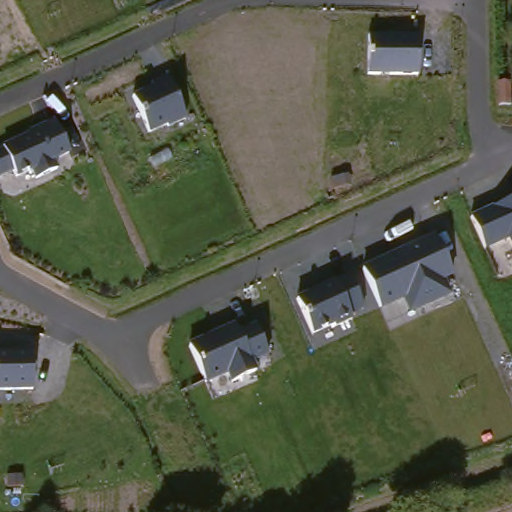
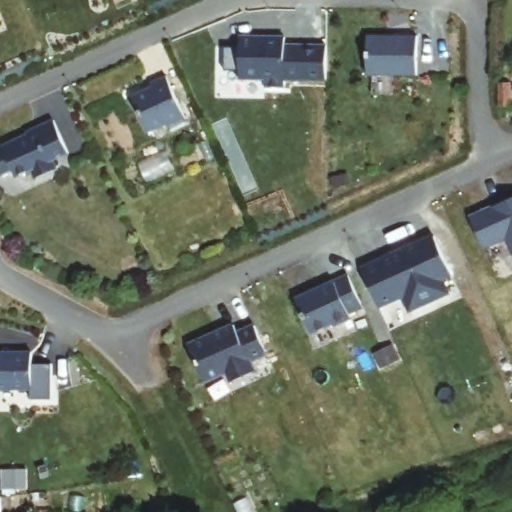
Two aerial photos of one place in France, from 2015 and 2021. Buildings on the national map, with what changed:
new [(329,81),(286,81),(286,90),(265,89),(265,79),(238,78),(238,71),(223,70),(224,45),(237,46),(238,36),(285,37),(285,45),(329,46),(329,81)]
unchanged [(364,80),(365,43),(415,43),(415,82),(364,80)]
unchanged [(144,135),(130,99),(168,81),(184,120),(144,135)]
unchanged [(502,85),(502,95),(511,95),(512,110),(491,109),(491,84),(502,85)]
unchanged [(15,179),(12,174),(0,181),(0,151),(52,125),(67,155),(15,179)]
unchanged [(480,249),(468,217),(512,199),(512,261),(503,240),(480,249)]
unchanged [(443,282),(449,295),(409,313),(402,300),(381,309),(363,267),(434,235),(454,278),(443,282)]
unchanged [(313,333),(297,299),(348,276),(364,310),(313,333)]
unchanged [(253,364),(256,372),(230,383),(225,375),(204,382),(190,344),(237,322),(240,328),(254,322),(268,357),(253,364)]
unchanged [(32,390),(0,392),(0,351),(33,350),(32,390)]

